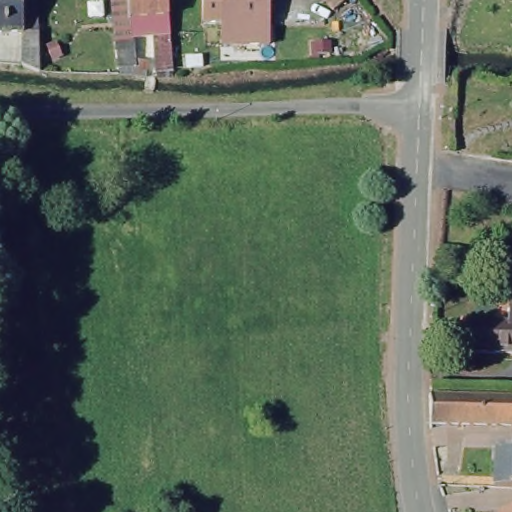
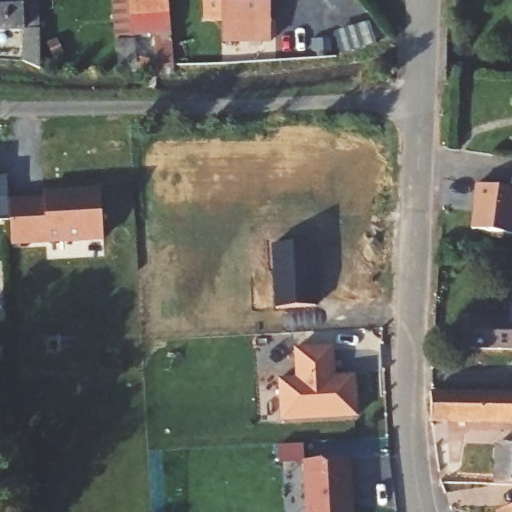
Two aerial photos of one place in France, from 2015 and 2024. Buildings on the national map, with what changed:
unchanged [(38,56),(20,56),(20,31),(0,31),(0,0),(37,0),(38,56)]
unchanged [(169,56),(152,56),(150,17),(129,19),(131,56),(146,56),(146,65),(113,64),(111,0),(167,0),(169,56)]
unchanged [(268,39),(220,41),(219,21),(197,22),(196,0),(266,0),(268,39)]
unchanged [(336,4),(332,0),(341,0),(336,4)]
new [(8,176),(10,220),(0,221),(0,176),(8,176)]
new [(472,201),(474,185),(512,190),(512,226),(511,236),(469,230),(473,201),(472,201)]
new [(45,203),(44,196),(67,195),(67,198),(77,197),(77,195),(100,192),(103,240),(13,247),(10,205),(45,203)]
unchanged [(461,321),(512,324),(512,354),(461,353),(461,321)]
new [(334,346),(335,367),(331,367),(331,376),(356,375),(359,415),(283,420),(281,380),(299,378),(297,348),(334,346)]
unchanged [(512,418),(426,413),(424,383),(512,389),(512,418)]
unchanged [(491,445),(512,446),(512,488),(505,487),(491,487),(491,445)]
new [(354,512),(309,512),(306,460),(351,457),(354,512)]
unchanged [(512,498),(512,512),(494,512),(492,504),(512,498)]

